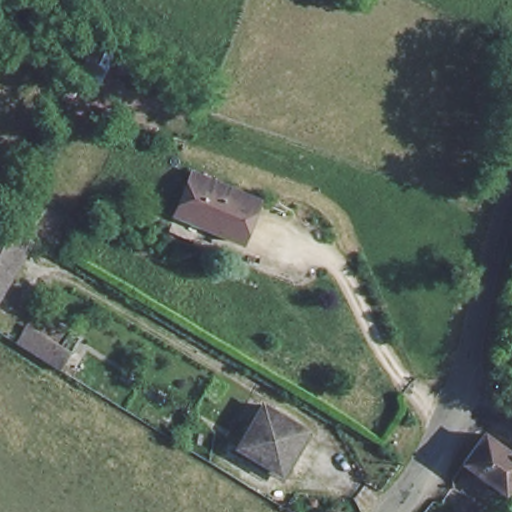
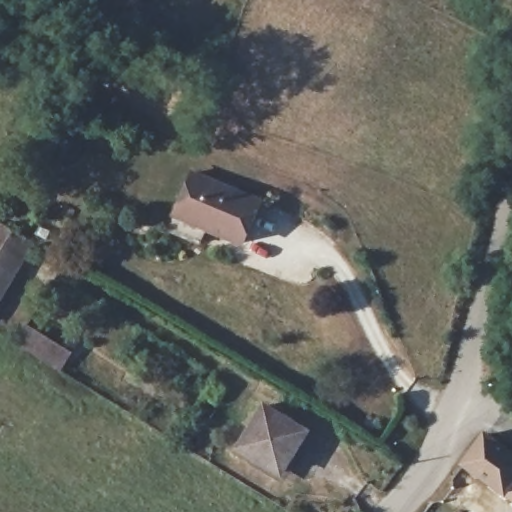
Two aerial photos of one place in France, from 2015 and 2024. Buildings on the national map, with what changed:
unchanged [(198,167),(265,197),(247,237),(212,222),(205,237),(173,222),(198,167)]
unchanged [(0,300),(0,216),(2,212),(38,234),(0,300)]
unchanged [(62,372),(17,344),(23,332),(70,360),(62,372)]
unchanged [(310,432),(282,473),(242,447),(268,406),(310,432)]
unchanged [(504,493),(466,462),(485,435),(512,455),(512,483),(504,493)]

